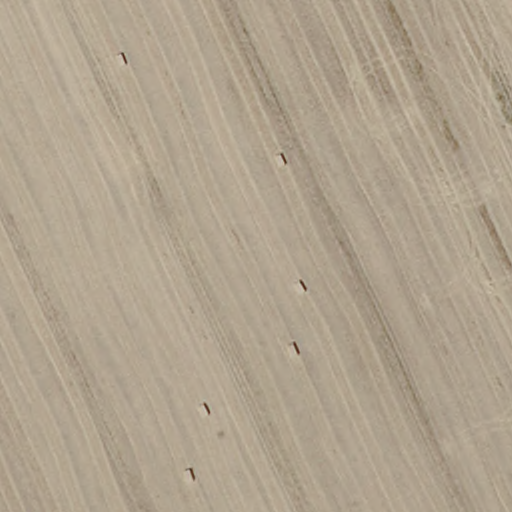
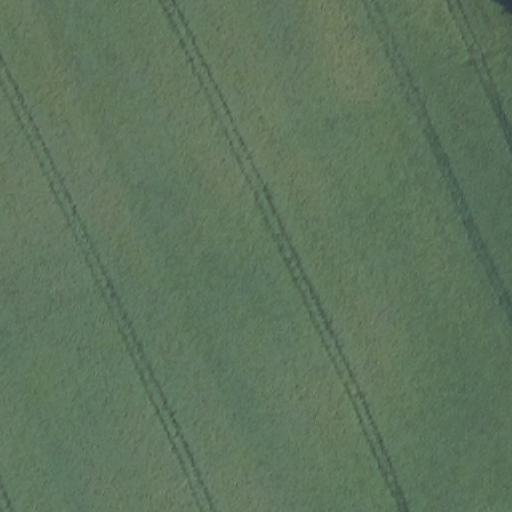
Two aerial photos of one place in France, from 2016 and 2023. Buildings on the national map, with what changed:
[]

